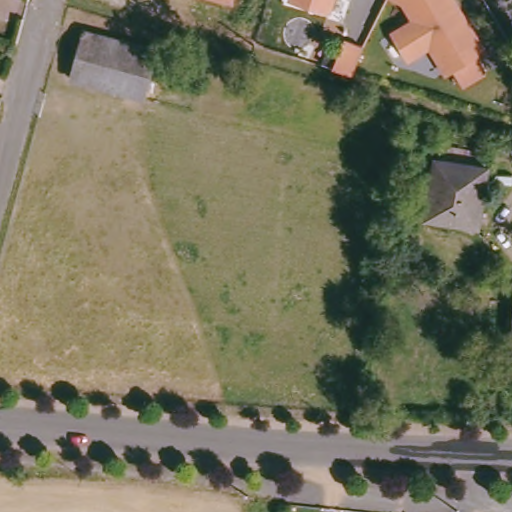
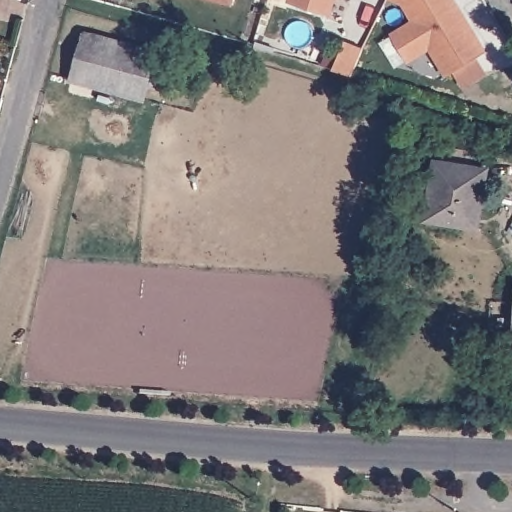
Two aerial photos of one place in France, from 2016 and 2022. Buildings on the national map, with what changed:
unchanged [(219,0),(233,0),(232,3),(219,0)]
unchanged [(327,13),(292,2),(292,0),(331,0),(327,13)]
unchanged [(462,12),(467,14),(487,56),(446,74),(430,40),(406,51),(393,23),(417,12),(411,0),(456,0),(462,12)]
unchanged [(86,32),(158,53),(145,100),(73,81),(86,32)]
unchanged [(335,71),(343,44),(363,50),(355,77),(335,71)]
unchanged [(489,169),(479,227),(428,218),(437,160),(489,169)]

